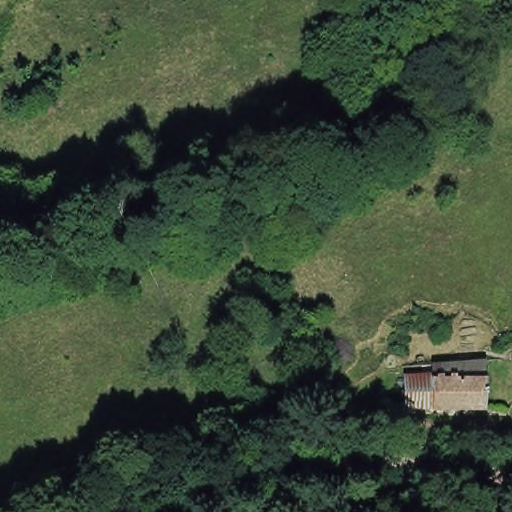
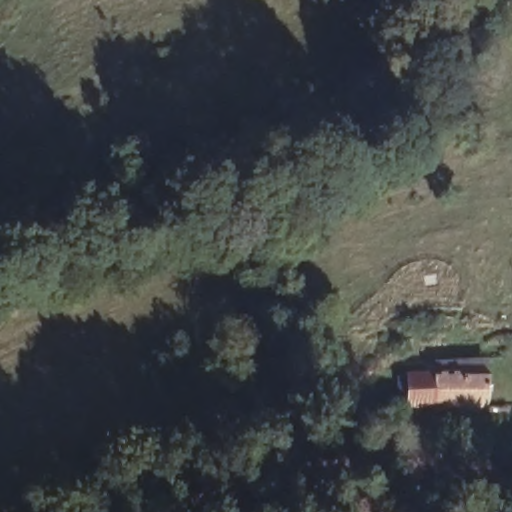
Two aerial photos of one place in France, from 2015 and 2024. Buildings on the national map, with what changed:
unchanged [(405,376),(432,375),(432,372),(485,372),(486,405),(432,406),(432,402),(406,404),(405,376)]

